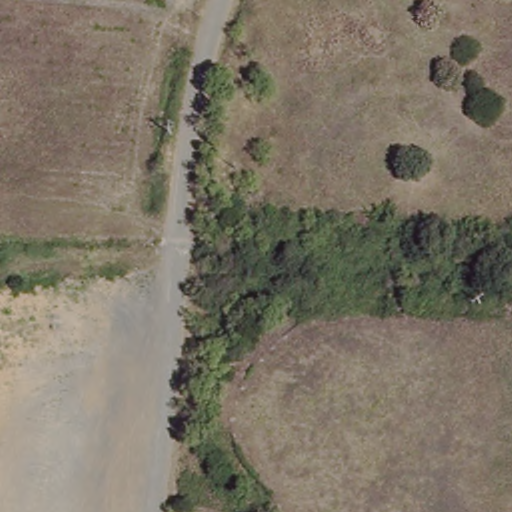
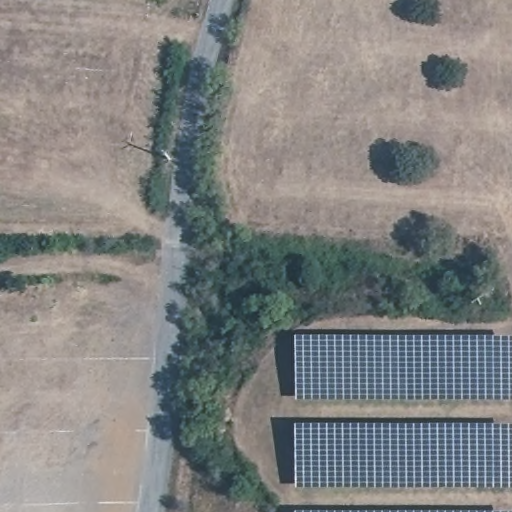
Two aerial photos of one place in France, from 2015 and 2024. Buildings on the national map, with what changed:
new [(297,340),(512,340),(512,403),(298,402),(297,340)]
new [(298,427),(512,427),(512,490),(297,490),(298,427)]

